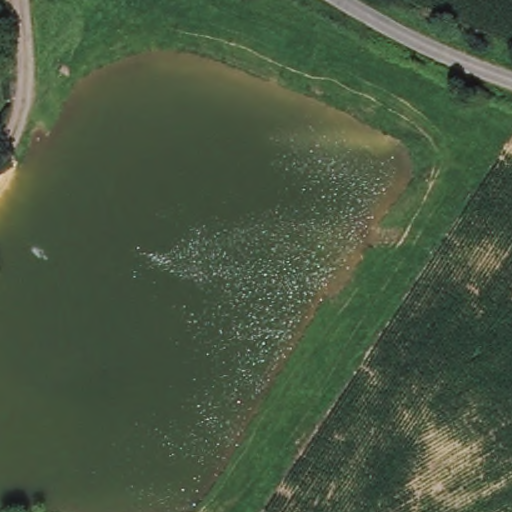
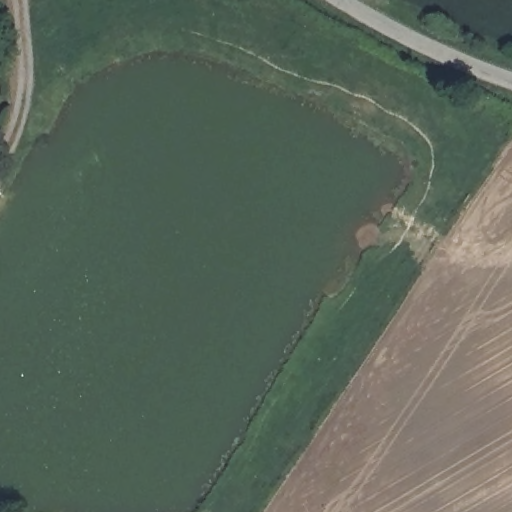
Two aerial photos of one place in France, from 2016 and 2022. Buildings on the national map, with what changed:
unchanged [(3,82),(2,94),(0,94),(0,82),(3,82)]

